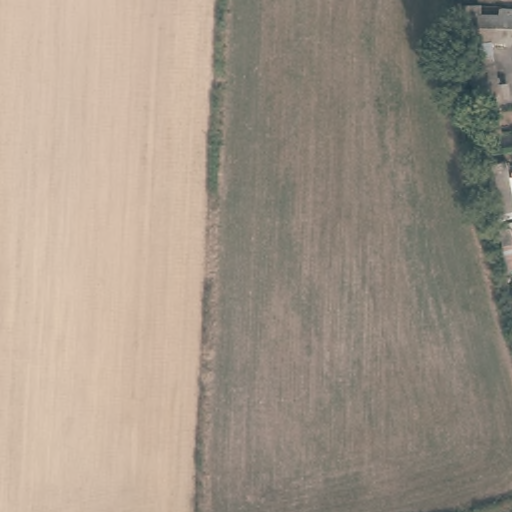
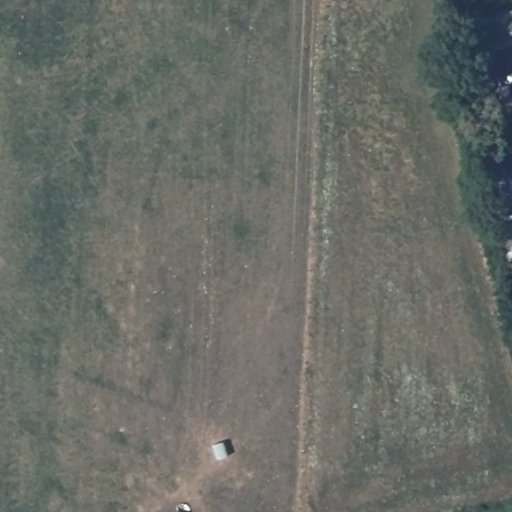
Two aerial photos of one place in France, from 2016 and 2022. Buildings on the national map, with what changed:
unchanged [(464,12),(512,14),(512,42),(495,41),(472,41),(462,40),(464,12)]
unchanged [(495,41),(502,94),(480,96),(472,41),(495,41)]
unchanged [(512,221),(496,223),(488,163),(512,156),(512,221)]

